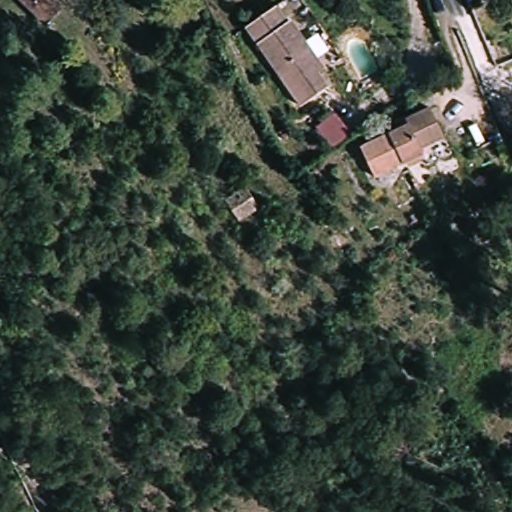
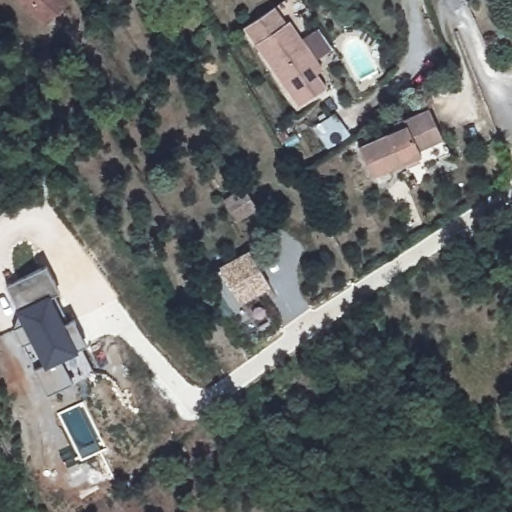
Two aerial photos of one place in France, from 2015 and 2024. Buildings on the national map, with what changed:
unchanged [(19,0),(66,0),(67,1),(43,25),(19,0)]
unchanged [(297,113),(241,30),(275,5),(329,87),(297,113)]
unchanged [(447,143),(416,153),(418,161),(373,175),(362,144),(399,131),(396,119),(405,116),(406,121),(435,111),(447,143)]
unchanged [(226,198),(246,183),(258,203),(239,217),(226,198)]
new [(249,249),(272,283),(243,303),(220,269),(249,249)]
new [(48,396),(35,371),(45,365),(33,341),(23,347),(14,329),(18,315),(17,310),(19,309),(7,286),(47,265),(60,290),(52,295),(67,323),(74,319),(88,344),(79,349),(80,351),(62,361),(74,383),(48,396)]

